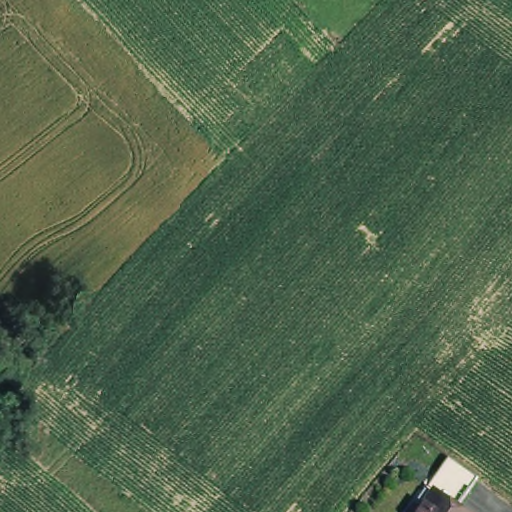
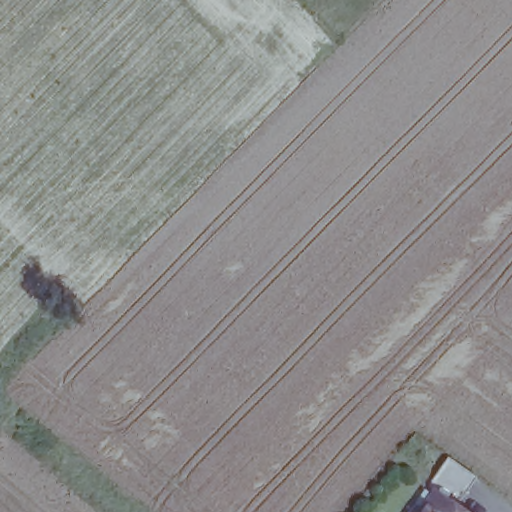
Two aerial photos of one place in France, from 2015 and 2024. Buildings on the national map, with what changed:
unchanged [(453,506),(425,486),(447,456),(475,476),(453,506)]
unchanged [(420,511),(432,492),(459,512),(408,512),(412,506),(420,511)]

